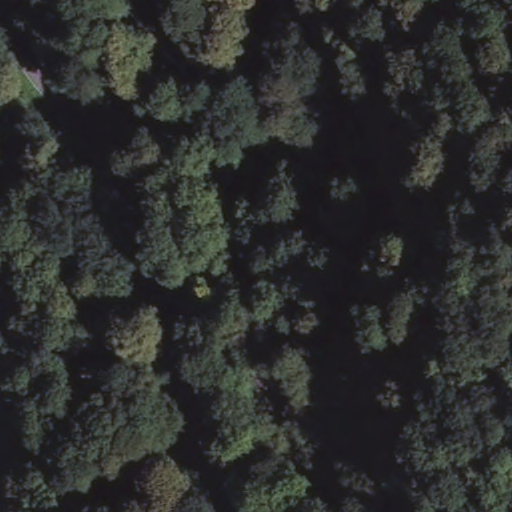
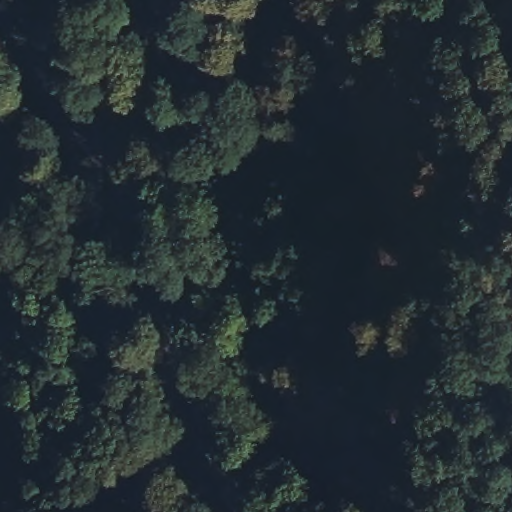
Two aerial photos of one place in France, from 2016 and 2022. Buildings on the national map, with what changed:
unchanged [(327,433),(278,416),(284,396),(289,381),(339,398),(327,433)]

